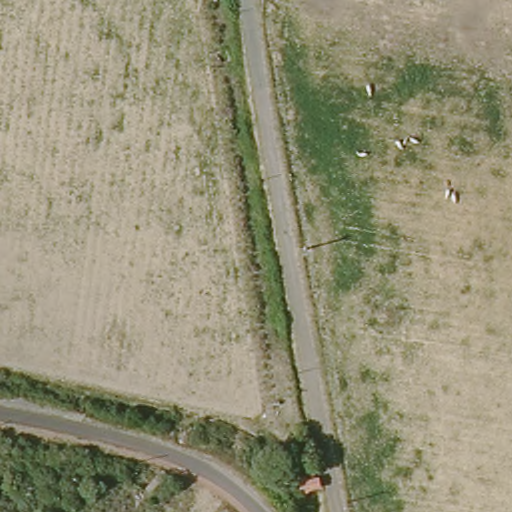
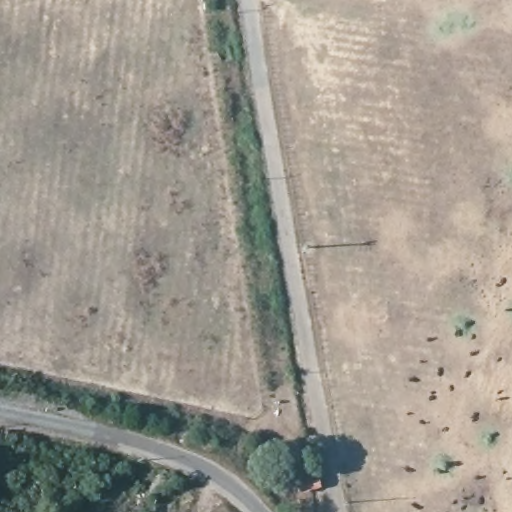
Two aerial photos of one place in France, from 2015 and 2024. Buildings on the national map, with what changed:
unchanged [(313,471),(314,485),(297,490),(295,474),(313,471)]

